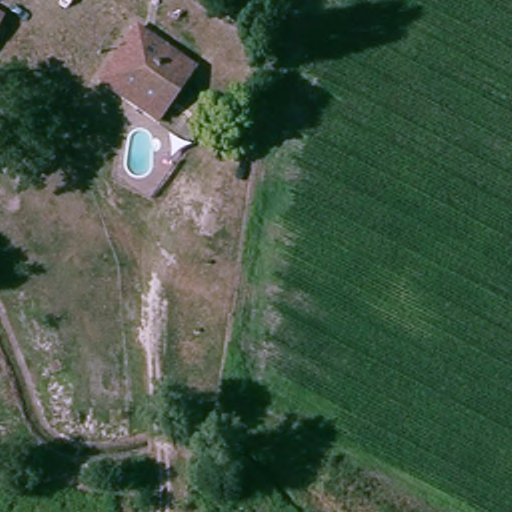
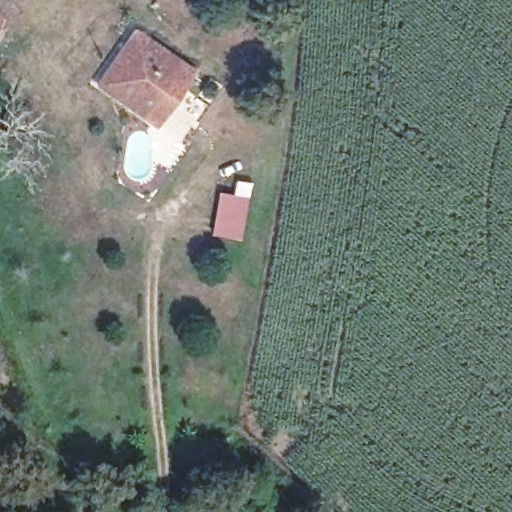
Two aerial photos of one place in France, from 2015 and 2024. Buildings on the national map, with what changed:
new [(0,44),(0,22),(8,26),(0,44)]
unchanged [(162,132),(100,91),(136,26),(199,64),(162,132)]
new [(214,235),(221,193),(249,197),(242,240),(214,235)]

